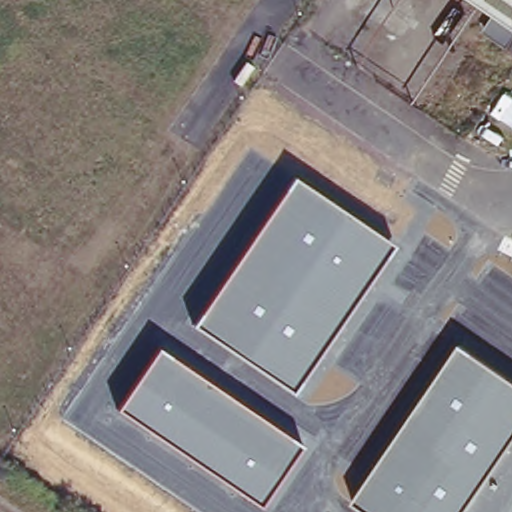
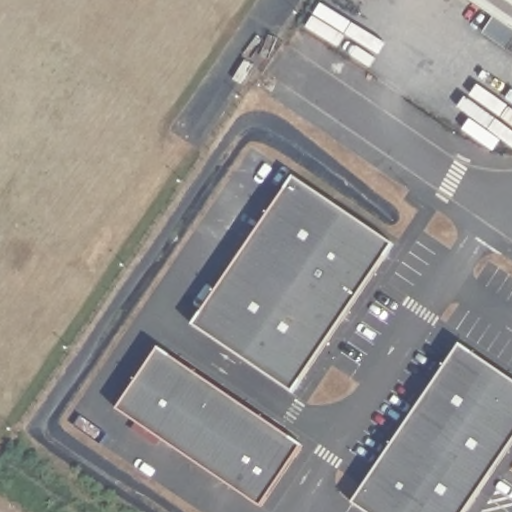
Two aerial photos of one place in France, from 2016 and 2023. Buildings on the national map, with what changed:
unchanged [(482,32),(492,15),(469,0),(512,0),(512,50),(482,32)]
unchanged [(292,391),(195,325),(295,177),(395,245),(292,391)]
unchanged [(367,512),(353,502),(460,345),(512,380),(512,440),(463,512),(367,512)]
unchanged [(261,504),(119,410),(161,349),(302,445),(261,504)]

